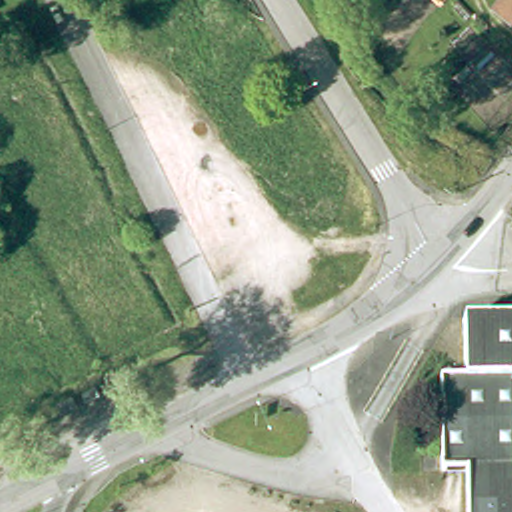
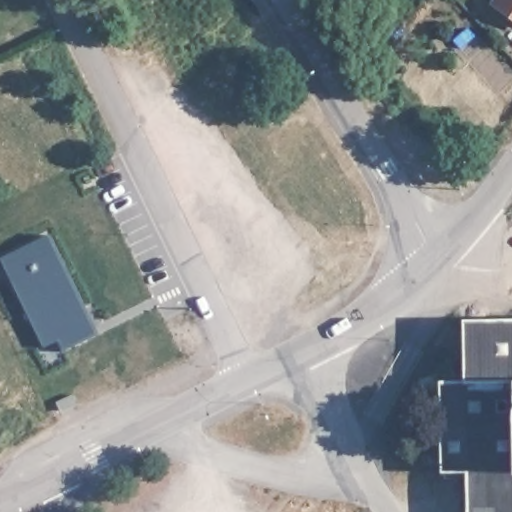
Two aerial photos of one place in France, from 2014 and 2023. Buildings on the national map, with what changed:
unchanged [(512,0),(512,16),(496,4),(499,0),(512,0)]
new [(50,240),(88,318),(79,322),(88,342),(69,351),(70,353),(64,356),(63,355),(65,353),(61,345),(46,352),(3,264),(50,240)]
unchanged [(468,472),(442,472),(440,378),(464,378),(462,315),(512,315),(512,512),(468,512),(468,472)]

